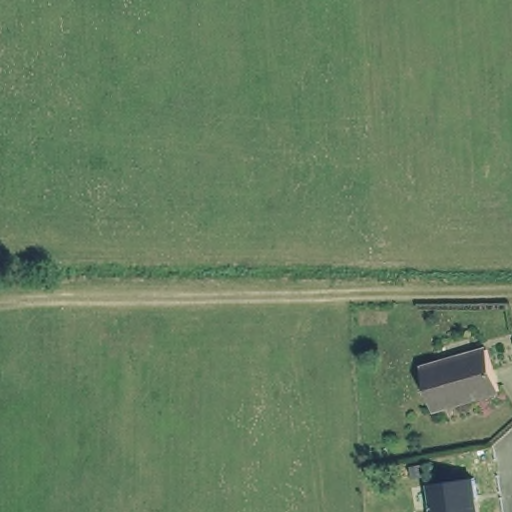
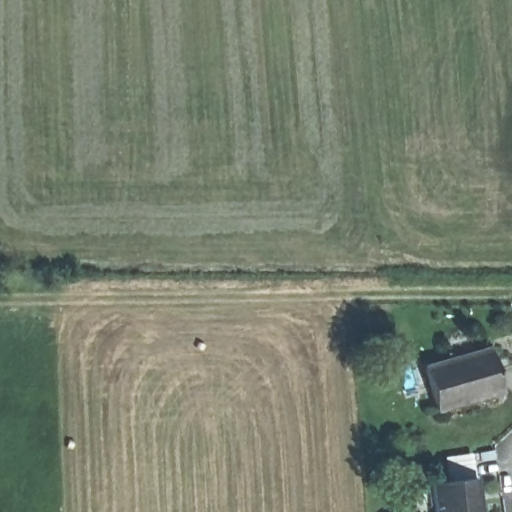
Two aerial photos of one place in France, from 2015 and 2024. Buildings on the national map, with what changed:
unchanged [(484,345),(497,388),(436,406),(423,365),(484,345)]
unchanged [(477,512),(434,512),(430,481),(472,476),(477,512)]

